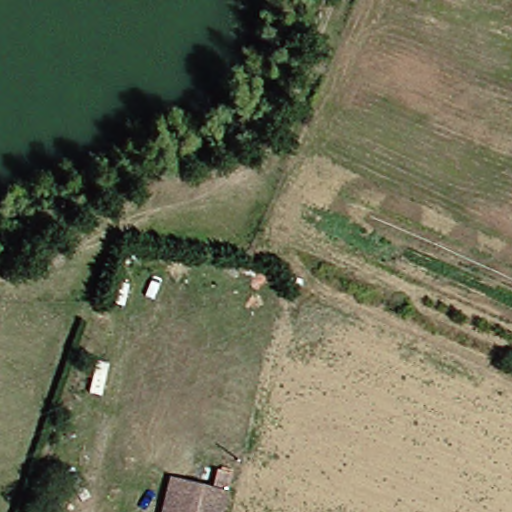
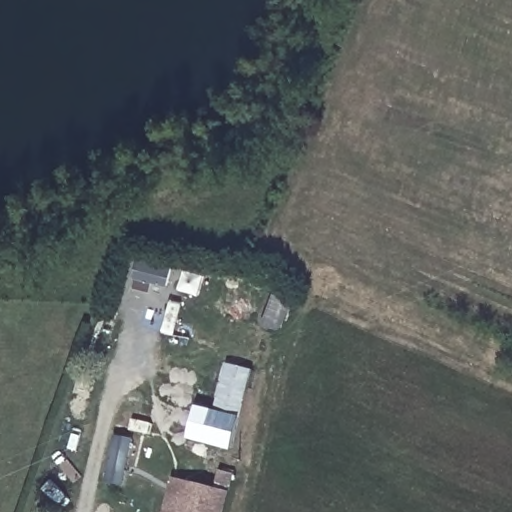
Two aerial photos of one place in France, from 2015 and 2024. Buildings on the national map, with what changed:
new [(196,406),(214,410),(227,364),(253,370),(241,417),(232,451),(188,439),(196,406)]
unchanged [(168,512),(176,476),(190,479),(182,512),(168,512)]
unchanged [(227,512),(182,512),(190,479),(232,490),(227,512)]

